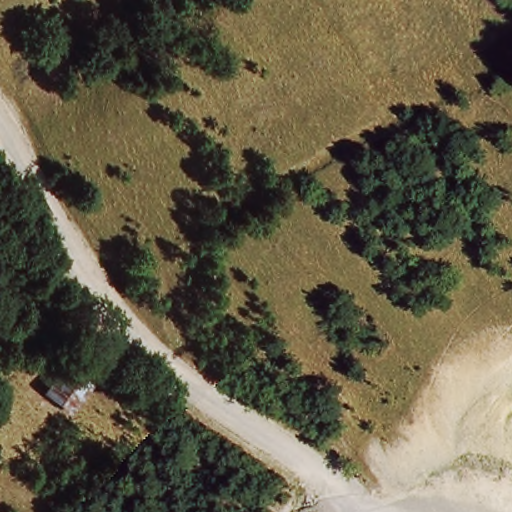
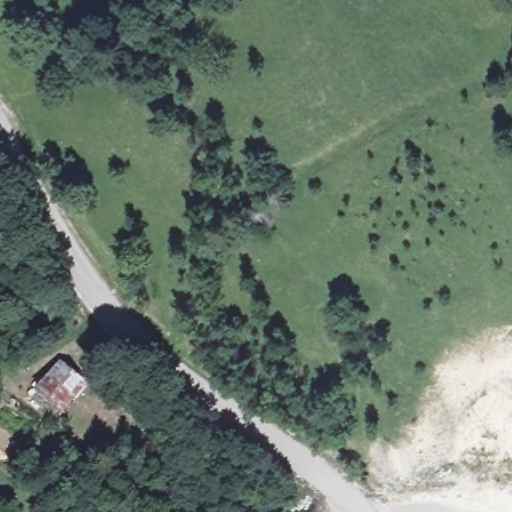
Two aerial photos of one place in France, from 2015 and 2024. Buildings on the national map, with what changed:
unchanged [(60,367),(83,385),(59,411),(37,392),(60,367)]

